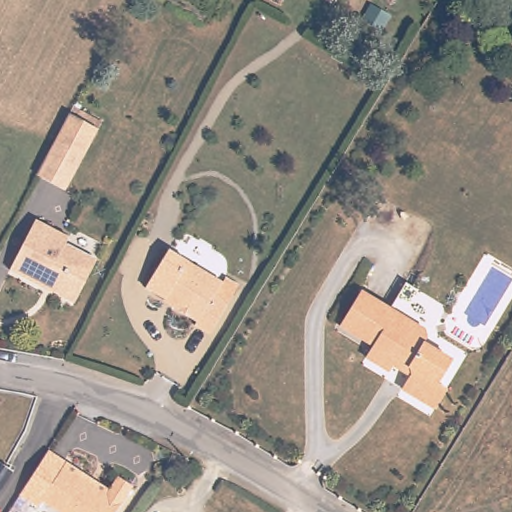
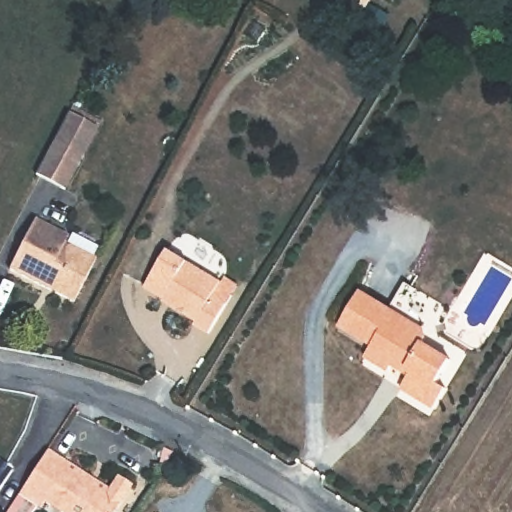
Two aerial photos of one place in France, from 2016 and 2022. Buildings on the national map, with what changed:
unchanged [(35,176),(54,140),(83,155),(65,191),(35,176)]
unchanged [(7,269),(33,220),(67,237),(64,242),(96,259),(72,303),(7,269)]
unchanged [(192,322),(193,320),(168,303),(170,301),(143,285),(167,247),(219,280),(222,273),(237,282),(225,302),(206,332),(192,322)]
unchanged [(388,365),(366,352),(374,340),(341,321),(362,287),(415,318),(388,365)]
unchanged [(390,366),(388,365),(415,318),(427,326),(429,331),(425,337),(454,355),(438,380),(448,385),(436,402),(404,384),(411,372),(393,361),(390,366)]
unchanged [(49,451),(67,462),(108,488),(116,476),(130,486),(114,512),(58,512),(41,501),(36,507),(19,497),(49,451)]
unchanged [(16,471),(0,497),(0,460),(16,471)]

